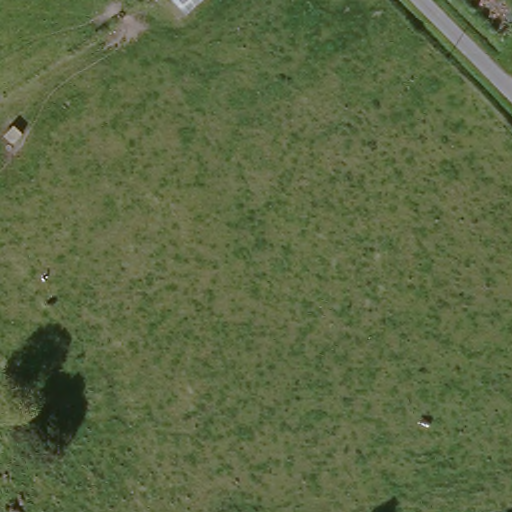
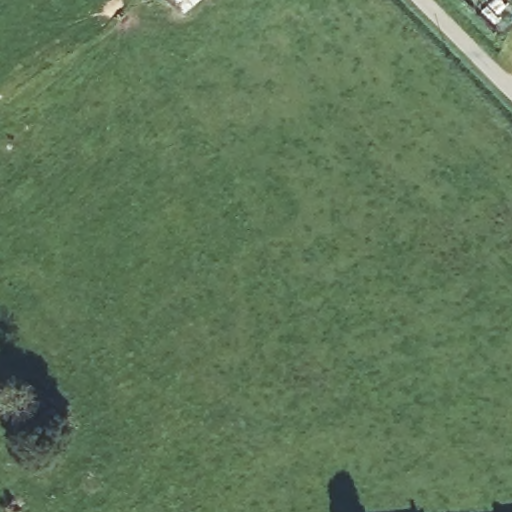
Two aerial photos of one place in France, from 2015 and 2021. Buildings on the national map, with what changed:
unchanged [(183,8),(176,0),(193,0),(183,8)]

